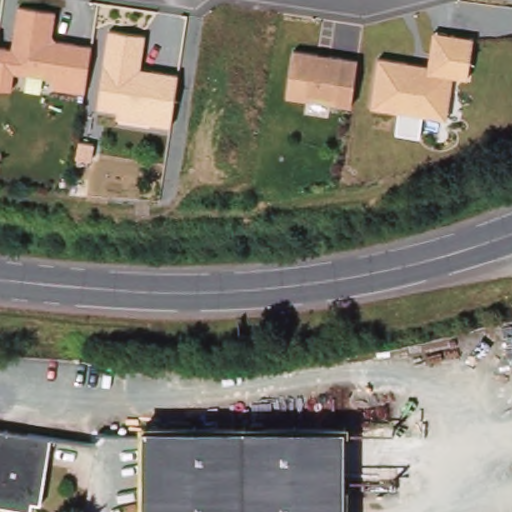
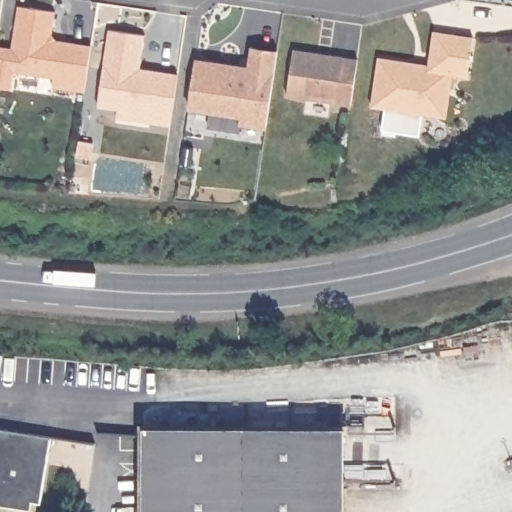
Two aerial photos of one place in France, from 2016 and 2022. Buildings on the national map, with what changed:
unchanged [(93,101),(60,96),(62,87),(17,80),(26,15),(63,20),(60,43),(65,50),(100,55),(93,101)]
unchanged [(425,67),(430,34),(470,39),(465,81),(452,80),(447,116),(424,114),(422,139),(397,136),(400,111),(368,105),(373,59),(425,67)]
unchanged [(179,130),(125,123),(126,115),(106,111),(117,35),(153,40),(148,73),(186,78),(179,130)]
unchanged [(357,61),(348,107),(285,100),(293,51),(357,61)]
new [(202,66),(247,71),(246,76),(254,77),(257,54),(283,57),(272,132),(245,128),(244,137),(212,132),(215,115),(196,112),(202,66)]
unchanged [(348,427),(348,512),(146,512),(147,427),(348,427)]
unchanged [(34,511),(0,506),(0,430),(54,438),(42,505),(35,503),(34,511)]

